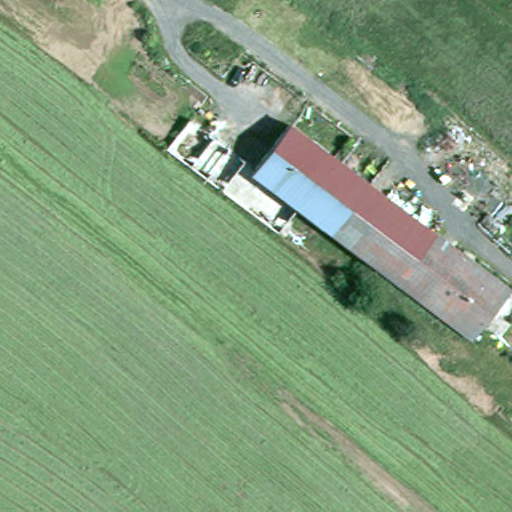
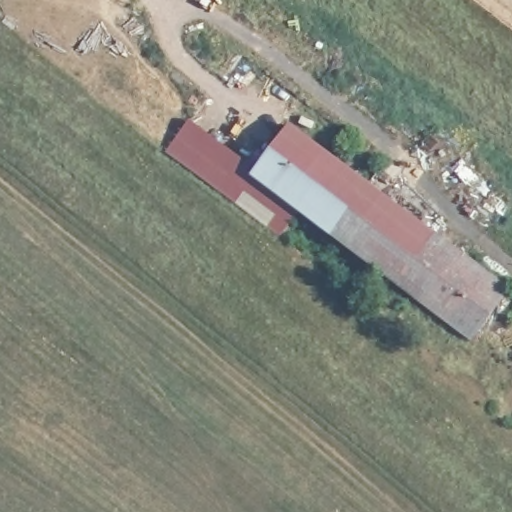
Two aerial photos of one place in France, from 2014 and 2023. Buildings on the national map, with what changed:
new [(246,161),(224,192),(165,151),(190,117),(246,161)]
unchanged [(297,129),(512,292),(512,300),(478,344),(258,179),(297,129)]

